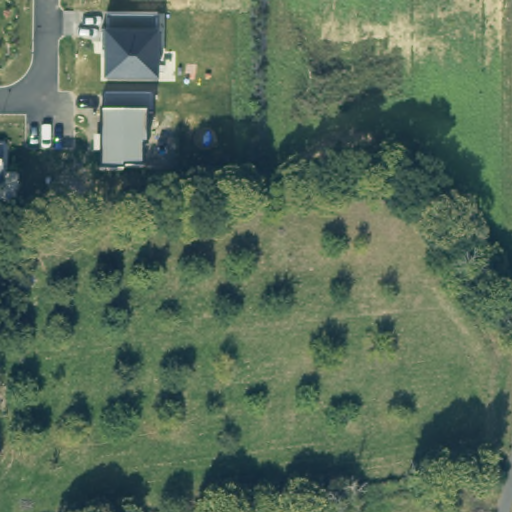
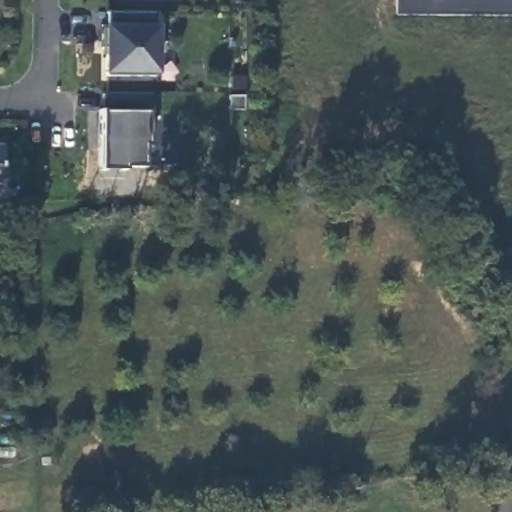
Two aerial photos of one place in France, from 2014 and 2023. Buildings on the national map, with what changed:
unchanged [(157,27),(156,75),(103,76),(104,26),(106,12),(156,14),(157,27)]
unchanged [(154,93),(153,114),(148,115),(149,146),(141,147),(142,167),(129,167),(128,170),(100,169),(102,112),(103,94),(154,93)]
unchanged [(3,145),(2,186),(0,186),(0,146),(3,145)]
unchanged [(0,254),(0,240),(27,238),(28,252),(0,254)]

